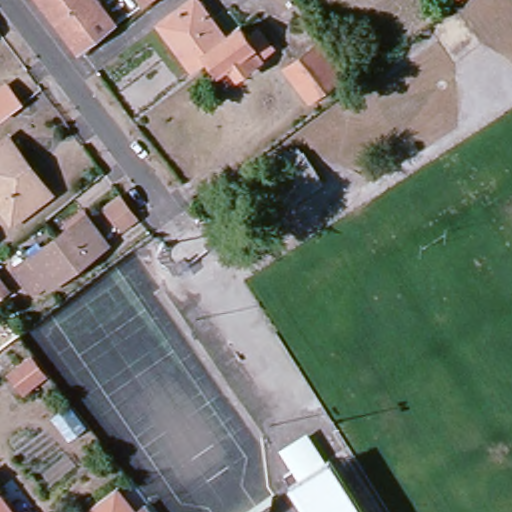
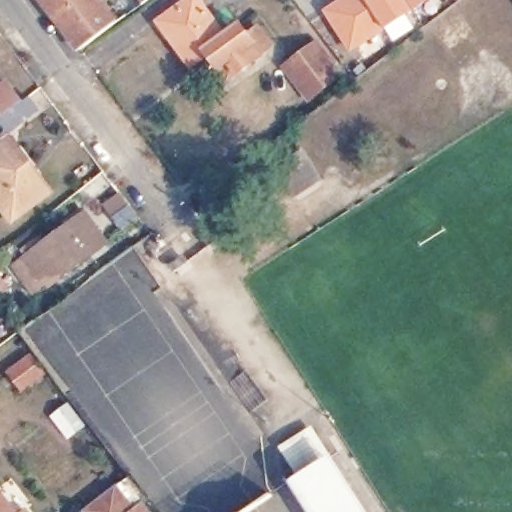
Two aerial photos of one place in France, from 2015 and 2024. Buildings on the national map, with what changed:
unchanged [(106,31),(69,59),(24,0),(82,0),(106,31)]
unchanged [(138,8),(131,0),(148,0),(138,8)]
unchanged [(187,73),(153,27),(190,0),(221,40),(236,29),(245,41),(253,36),(266,52),(255,60),(257,62),(233,79),(224,68),(214,74),(204,61),(187,73)]
new [(385,29),(386,30),(350,53),(323,11),(339,0),(431,0),(385,29)]
unchanged [(313,47),(338,82),(305,106),(279,71),(313,47)]
unchanged [(1,88),(14,105),(0,115),(0,88),(1,88)]
unchanged [(8,224),(0,214),(0,143),(3,141),(14,155),(19,152),(38,176),(32,180),(45,197),(8,224)]
unchanged [(298,160),(317,190),(290,208),(271,177),(298,160)]
unchanged [(124,230),(114,217),(108,210),(123,198),(129,206),(138,218),(124,230)]
unchanged [(82,265),(57,283),(40,296),(37,292),(24,300),(6,276),(19,267),(15,262),(32,249),(36,254),(60,235),(57,231),(72,220),(75,224),(79,230),(97,254),(82,265)]
unchanged [(3,295),(0,296),(0,291),(3,295)]
unchanged [(44,377),(24,392),(12,377),(32,361),(44,377)]
unchanged [(49,416),(71,407),(90,432),(71,445),(49,416)]
unchanged [(356,512),(296,512),(284,493),(328,466),(356,512)]
unchanged [(123,512),(81,512),(108,492),(123,512)]
unchanged [(5,512),(0,512),(0,506),(5,512)]
unchanged [(137,507),(141,512),(131,512),(137,508),(137,507)]

